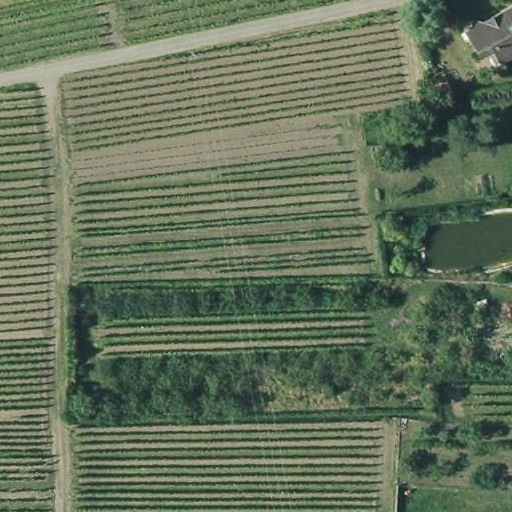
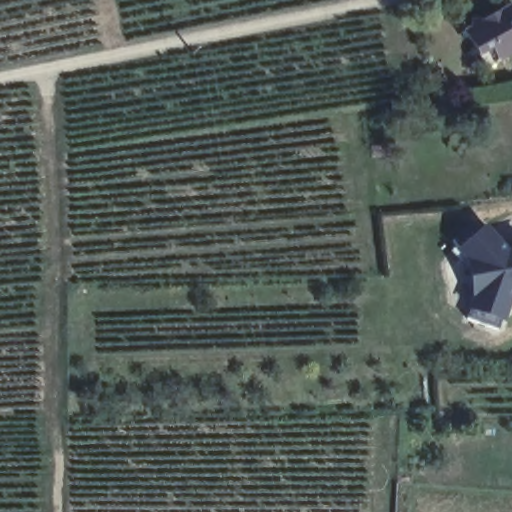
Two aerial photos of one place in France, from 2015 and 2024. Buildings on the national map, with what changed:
unchanged [(497,65),(490,51),(478,59),(465,34),(471,30),(472,23),(481,25),(512,9),(512,57),(497,65)]
new [(497,329),(467,318),(471,307),(452,302),(445,260),(460,248),(453,240),(478,220),(507,254),(512,253),(512,291),(497,329)]

